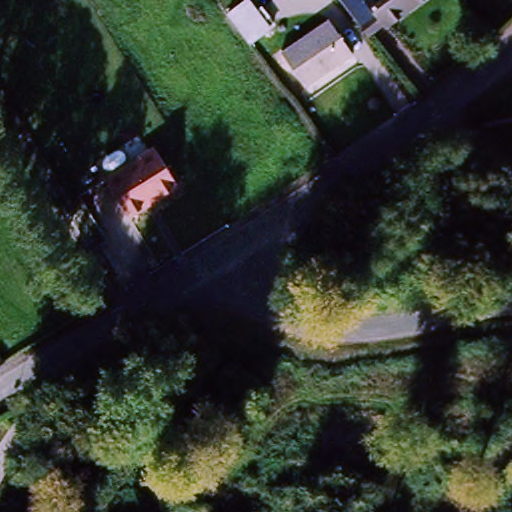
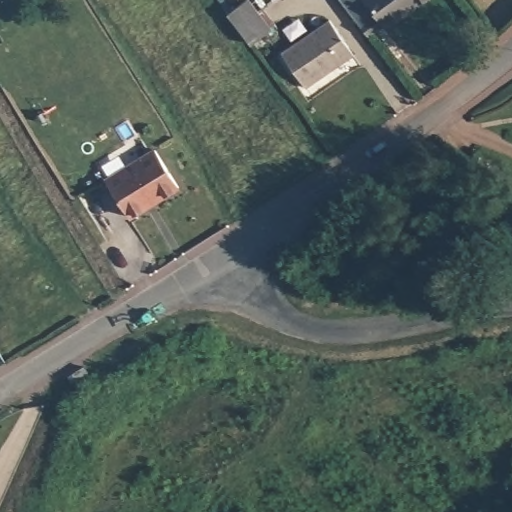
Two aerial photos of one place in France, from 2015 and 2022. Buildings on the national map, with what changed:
unchanged [(269,30),(250,44),(228,15),(247,0),(269,30)]
unchanged [(380,20),(364,32),(340,0),(366,0),(380,20)]
unchanged [(382,21),(380,20),(366,0),(410,0),(382,21)]
unchanged [(306,84),(282,50),(330,16),(353,50),(306,84)]
unchanged [(157,150),(179,189),(145,207),(124,169),(157,150)]

